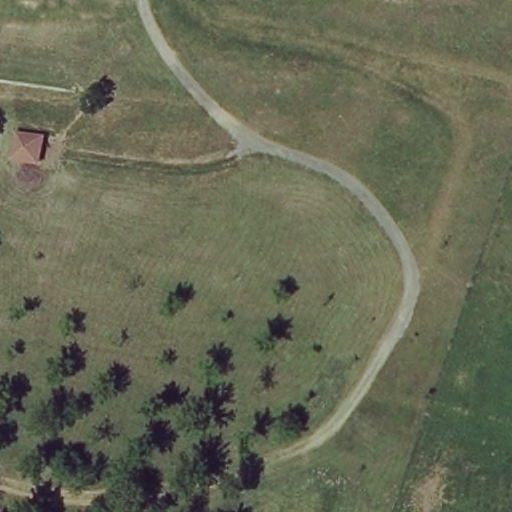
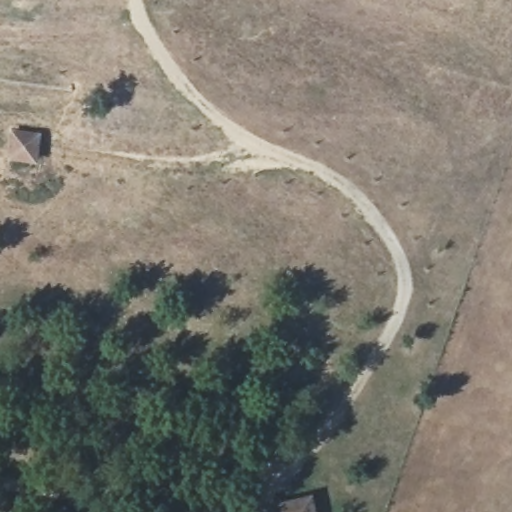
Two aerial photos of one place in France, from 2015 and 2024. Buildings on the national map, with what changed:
unchanged [(36,163),(7,159),(10,129),(40,134),(36,163)]
new [(271,504),(311,494),(316,512),(275,512),(275,509),(271,504)]

